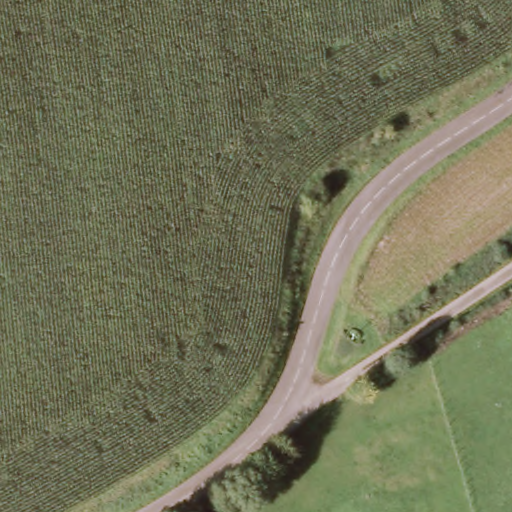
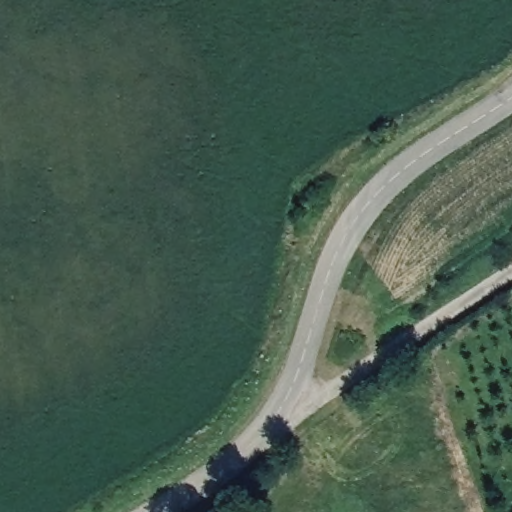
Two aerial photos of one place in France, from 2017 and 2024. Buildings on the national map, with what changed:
[]

